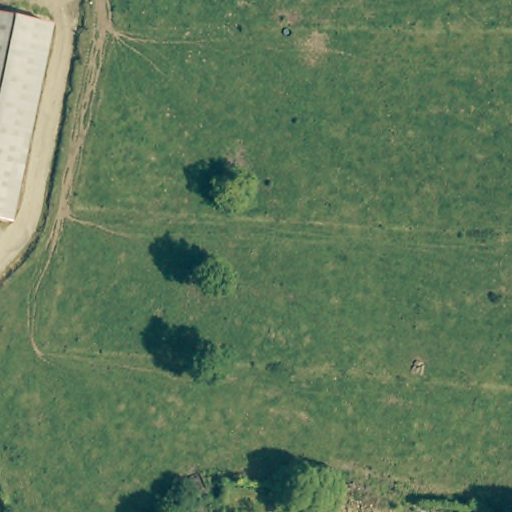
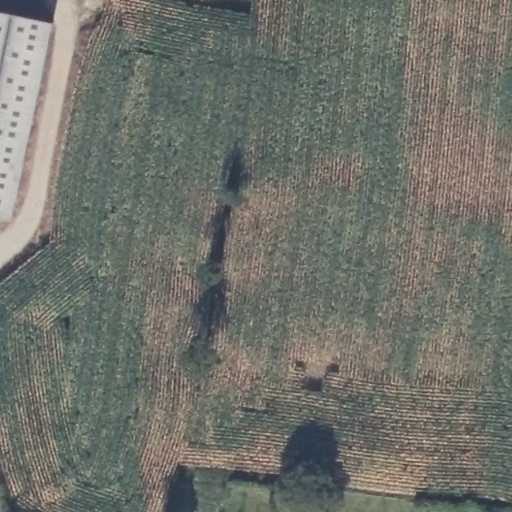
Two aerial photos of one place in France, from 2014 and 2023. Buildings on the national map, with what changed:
unchanged [(53,27),(12,226),(0,223),(0,16),(53,27)]

